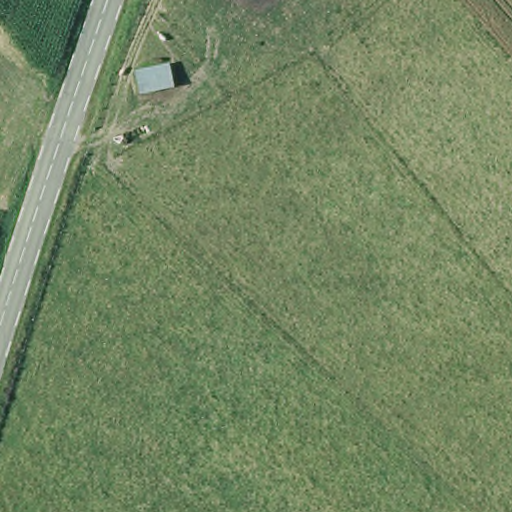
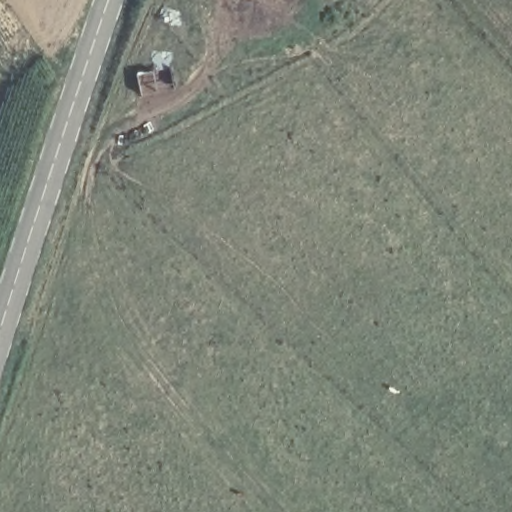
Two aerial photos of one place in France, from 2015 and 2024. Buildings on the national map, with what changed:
unchanged [(175,70),(179,96),(140,103),(135,77),(175,70)]

